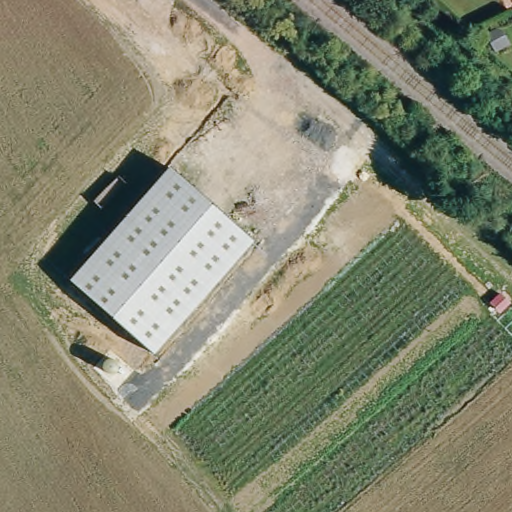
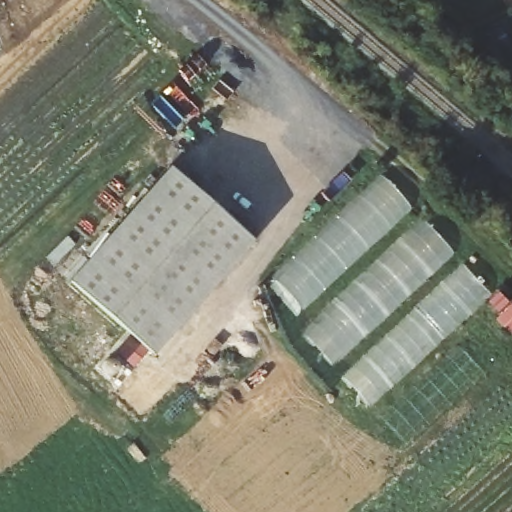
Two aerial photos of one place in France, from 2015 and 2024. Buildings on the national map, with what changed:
unchanged [(253,242),(152,353),(70,278),(119,221),(98,201),(120,179),(141,198),(169,166),(253,242)]
new [(381,173),(412,206),(296,320),(267,283),(381,173)]
new [(423,220),(454,253),(333,368),(303,334),(423,220)]
new [(466,265),(493,295),(370,411),(341,376),(466,265)]
new [(500,293),(509,302),(500,311),(491,302),(500,293)]
new [(511,335),(497,320),(512,307),(512,335),(511,335)]

